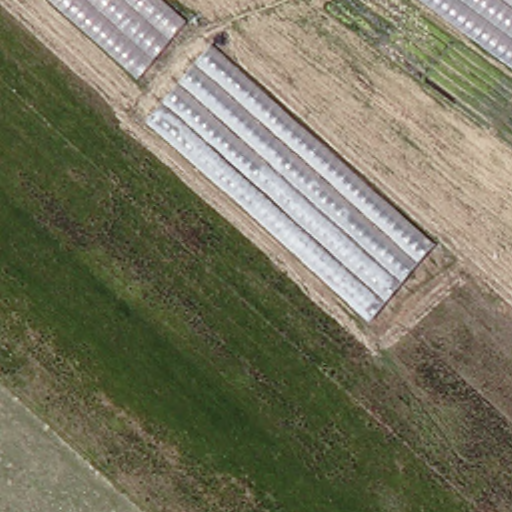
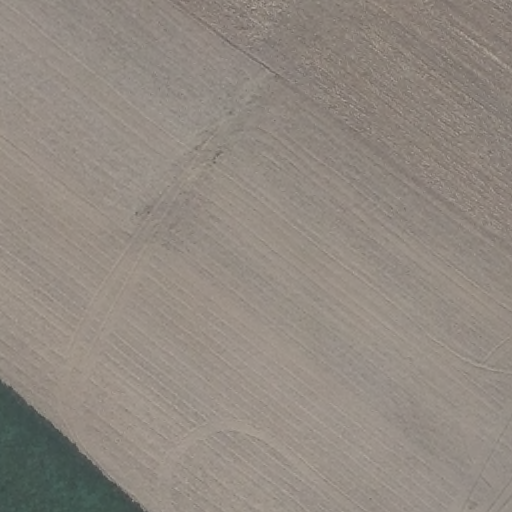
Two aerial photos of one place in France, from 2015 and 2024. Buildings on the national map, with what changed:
demolished [(127,97),(21,0),(164,0),(189,22),(127,97)]
unchanged [(427,0),(512,0),(512,62),(427,0)]
demolished [(215,51),(439,247),(376,320),(156,121),(215,51)]

